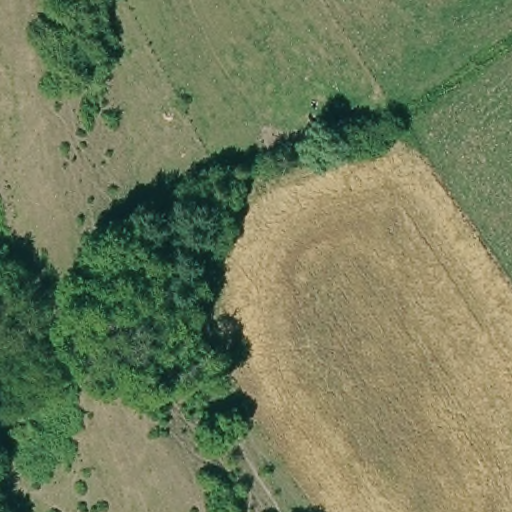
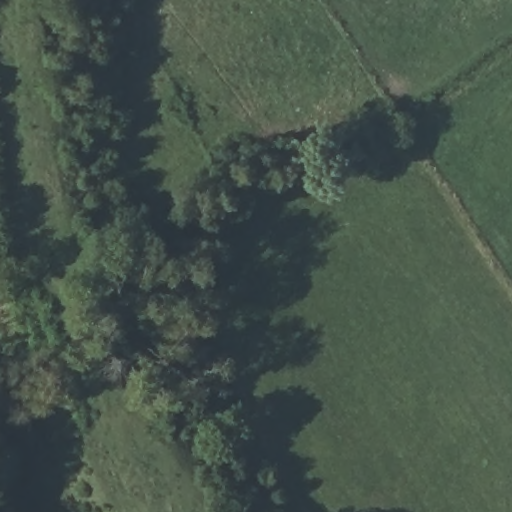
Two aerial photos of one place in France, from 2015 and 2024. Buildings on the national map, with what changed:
[]

